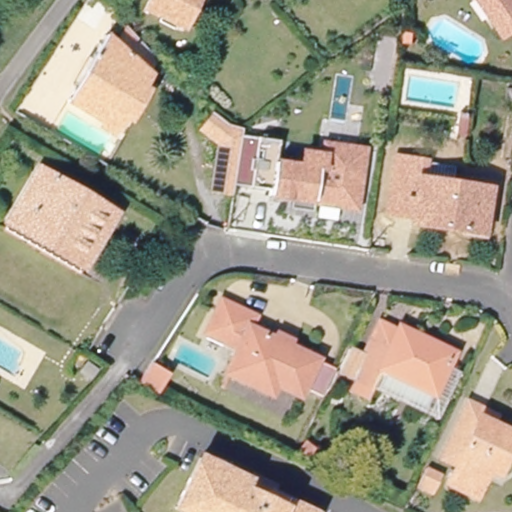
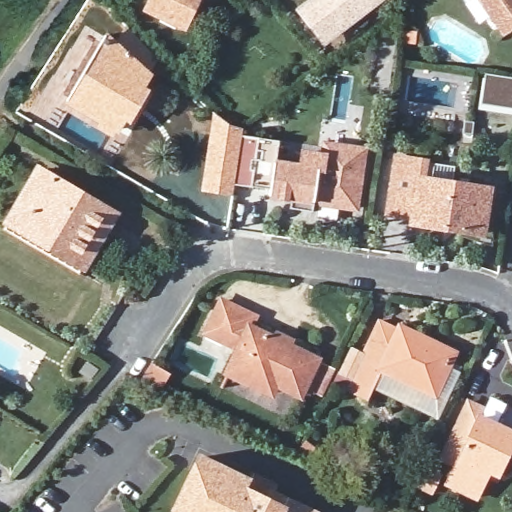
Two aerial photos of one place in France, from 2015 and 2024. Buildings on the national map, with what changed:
unchanged [(147,9),(152,0),(197,0),(184,29),(147,9)]
new [(384,0),(324,46),(294,9),(305,0),(384,0)]
unchanged [(481,0),(512,0),(512,21),(501,29),(481,0)]
unchanged [(118,126),(113,123),(105,135),(57,108),(96,41),(107,52),(119,32),(135,48),(144,63),(135,79),(138,81),(130,94),(135,96),(118,126)]
new [(512,78),(512,114),(477,108),(483,73),(512,78)]
unchanged [(462,110),(470,111),(466,133),(458,131),(462,110)]
unchanged [(229,127),(243,130),(232,193),(212,188),(220,144),(200,126),(212,112),(229,127)]
unchanged [(317,213),(293,209),(294,199),(273,195),(273,189),(255,187),(263,136),(283,140),(280,161),(325,168),(328,143),(367,149),(357,208),(320,202),(317,213)]
unchanged [(475,234),(407,223),(408,216),(381,212),(390,158),(417,163),(417,164),(444,168),(442,182),(483,189),(475,234)]
unchanged [(37,164),(42,168),(39,172),(48,177),(50,173),(56,176),(53,180),(110,215),(81,263),(5,218),(37,164)]
unchanged [(76,270),(88,278),(85,282),(0,228),(0,224),(1,224),(5,218),(81,263),(76,270)]
unchanged [(300,382),(297,389),(272,378),(267,388),(224,367),(234,343),(202,329),(216,294),(238,304),(233,316),(334,363),(320,390),(300,382)]
unchanged [(376,386),(371,396),(351,386),(353,381),(335,372),(346,351),(357,357),(380,313),(452,353),(444,368),(431,393),(389,369),(380,388),(376,386)]
unchanged [(84,367),(95,375),(87,385),(76,377),(84,367)]
unchanged [(456,373),(434,416),(380,388),(389,369),(431,393),(444,368),(456,373)]
unchanged [(146,383),(153,373),(168,380),(163,391),(146,383)]
unchanged [(489,476),(475,502),(447,488),(456,470),(442,463),(471,407),(484,414),(499,421),(494,430),(512,439),(512,450),(496,480),(489,476)]
unchanged [(178,509),(202,459),(255,485),(257,479),(276,489),(274,494),(274,496),(308,512),(183,512),(178,509)]

